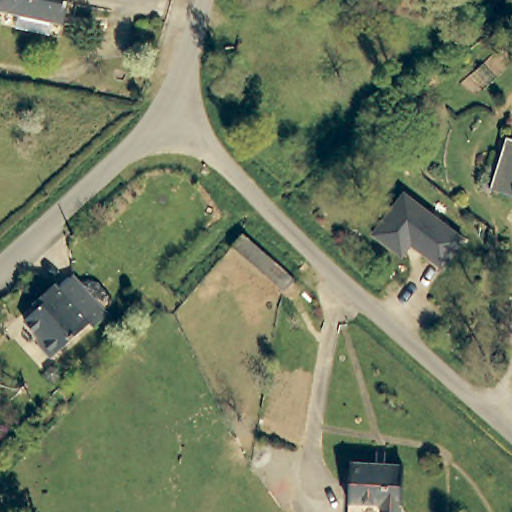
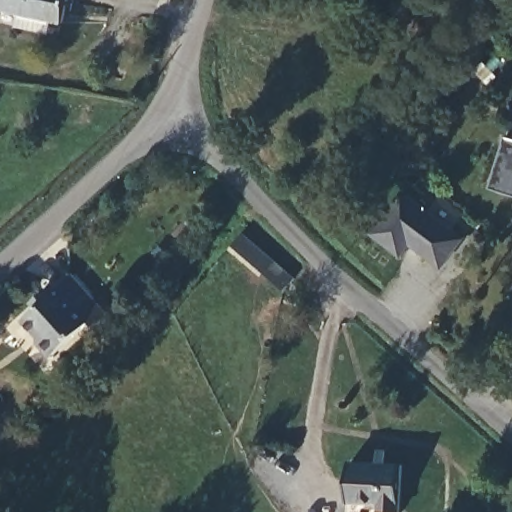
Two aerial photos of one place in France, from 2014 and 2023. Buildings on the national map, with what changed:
unchanged [(67,20),(57,18),(55,31),(20,24),(22,11),(0,6),(0,0),(71,0),(67,20)]
unchanged [(506,132),(512,134),(512,191),(490,183),(506,132)]
unchanged [(457,240),(436,268),(405,244),(395,256),(368,234),(400,194),(457,240)]
unchanged [(303,312),(285,296),(230,245),(241,234),(285,274),(304,293),(303,312)]
unchanged [(40,338),(41,331),(26,314),(41,301),(36,296),(56,278),(61,283),(75,272),(110,312),(96,324),(92,320),(56,354),(40,338)]
unchanged [(405,512),(383,512),(383,505),(351,503),(353,462),(407,465),(405,512)]

